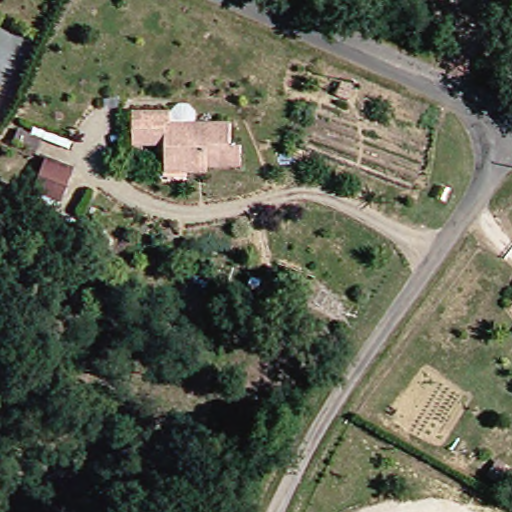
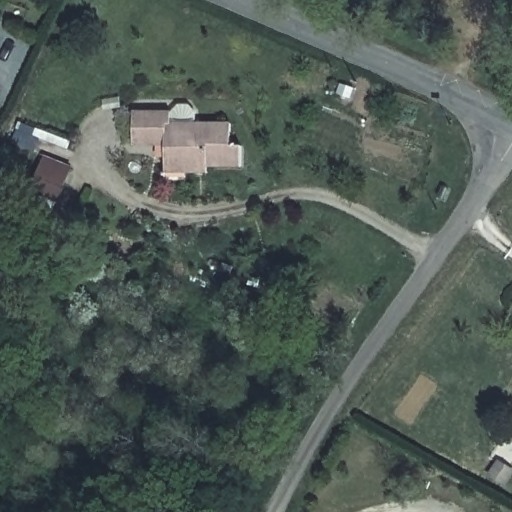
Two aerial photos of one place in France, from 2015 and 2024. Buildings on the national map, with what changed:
unchanged [(4,92),(0,98),(0,90),(4,92)]
unchanged [(173,173),(173,158),(173,140),(140,140),(140,109),(178,109),(185,101),(195,101),(203,108),(203,120),(238,120),(238,144),(249,144),(249,167),(215,167),(215,173),(173,173)]
unchanged [(65,175),(47,213),(17,199),(32,158),(65,175)]

